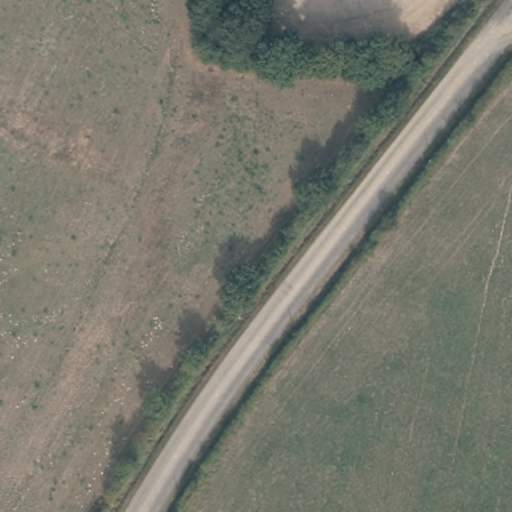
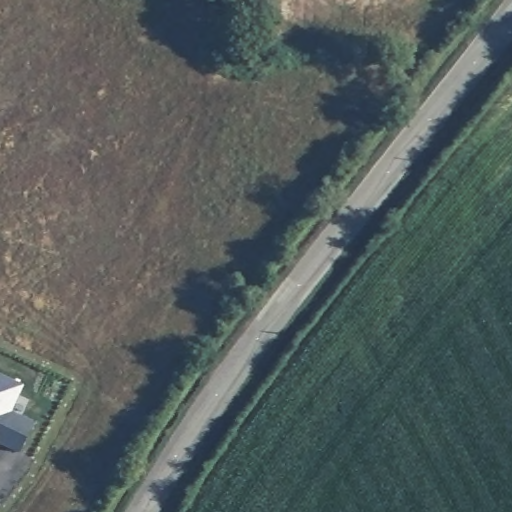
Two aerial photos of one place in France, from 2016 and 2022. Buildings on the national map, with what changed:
new [(11,412),(35,422),(21,453),(0,444),(0,374),(24,385),(11,412)]

